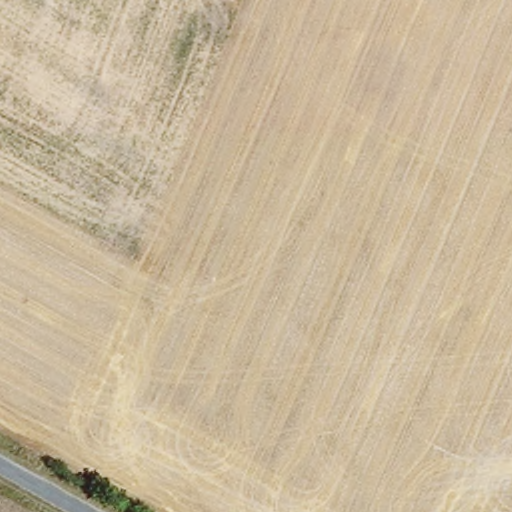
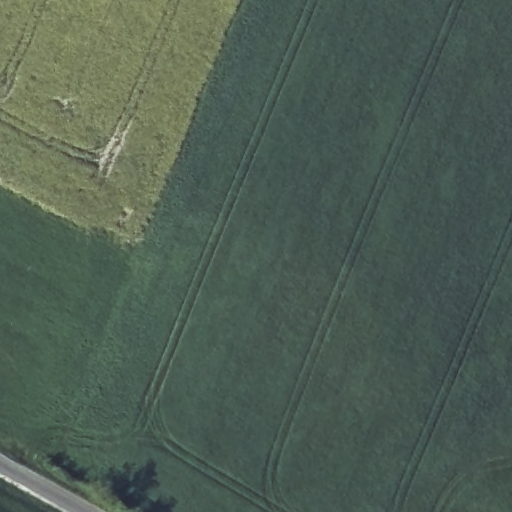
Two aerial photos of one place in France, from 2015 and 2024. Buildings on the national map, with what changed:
unchanged [(241,3),(235,0),(242,0),(241,3)]

